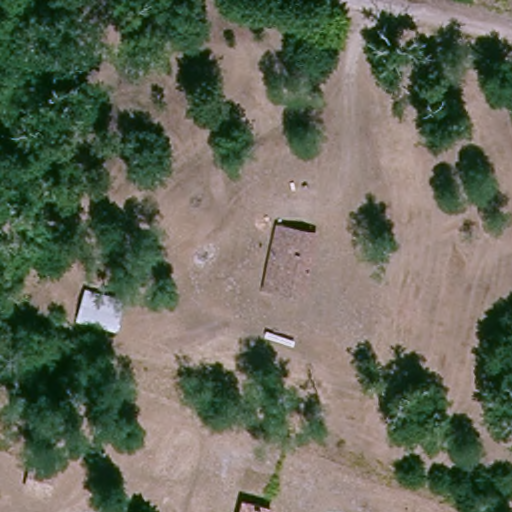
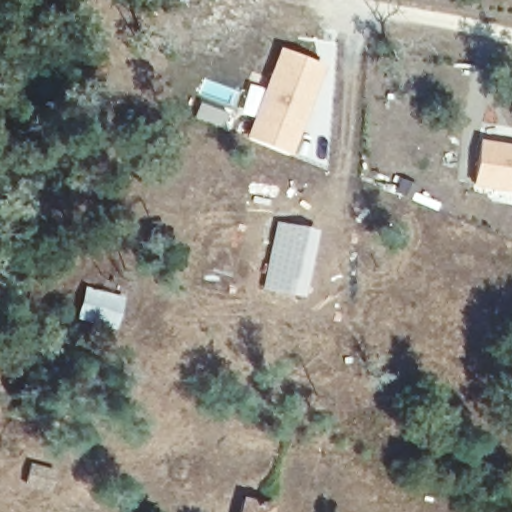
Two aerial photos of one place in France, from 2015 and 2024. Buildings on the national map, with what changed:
new [(249,83),(262,88),(277,47),(323,65),(304,118),(289,154),(245,138),(251,118),(239,113),(249,83)]
new [(200,102),(231,114),(226,129),(194,118),(200,102)]
new [(477,140),(512,146),(512,194),(469,187),(477,140)]
unchanged [(266,267),(271,244),(275,224),(293,226),(317,230),(306,294),(280,289),(263,287),(266,267)]
unchanged [(109,329),(77,317),(87,291),(119,302),(109,329)]
unchanged [(43,488),(12,479),(17,464),(46,472),(43,488)]
unchanged [(235,512),(237,502),(277,510),(276,512),(235,512)]

